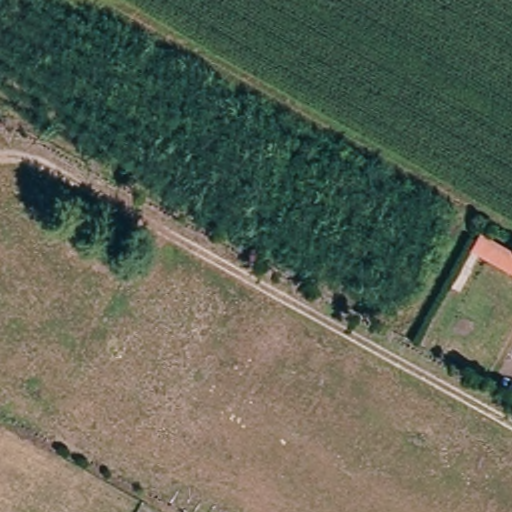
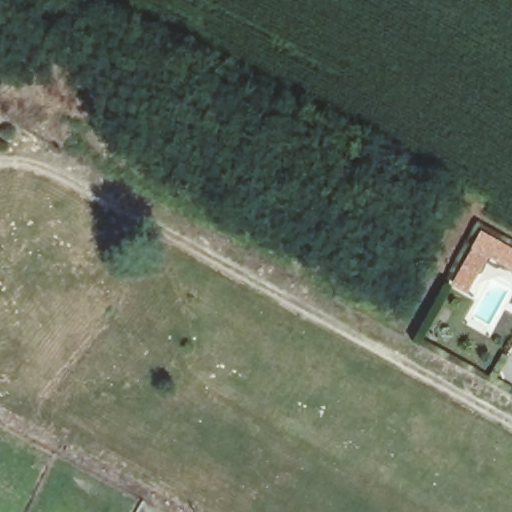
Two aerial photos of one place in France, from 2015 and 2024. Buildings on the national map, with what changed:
unchanged [(482,232),(512,247),(512,268),(473,248),(482,232)]

